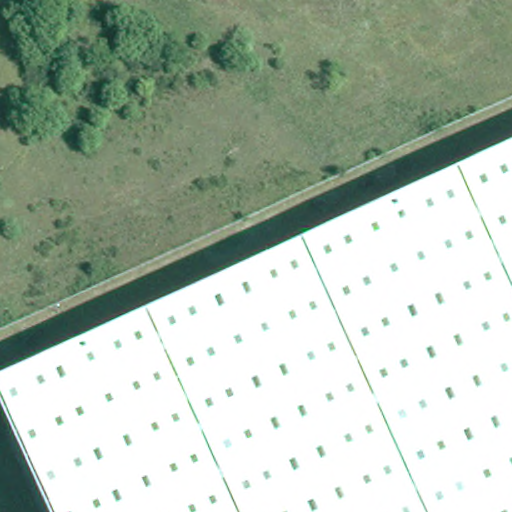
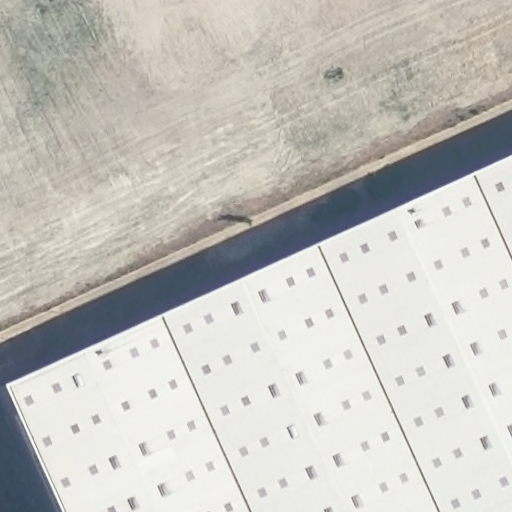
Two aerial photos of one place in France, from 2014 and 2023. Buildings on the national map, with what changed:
unchanged [(0,387),(0,379),(512,147),(512,512),(57,512),(8,406),(0,387)]

